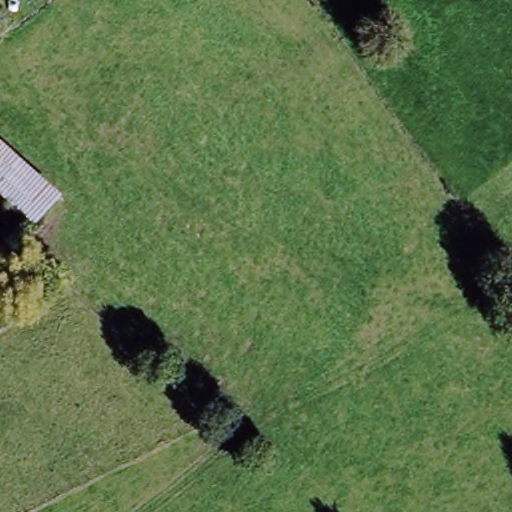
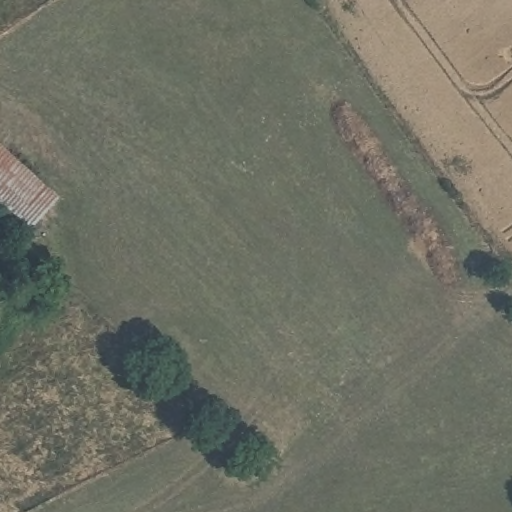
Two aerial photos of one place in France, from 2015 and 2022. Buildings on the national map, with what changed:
unchanged [(15,248),(0,234),(0,145),(60,201),(15,248)]

